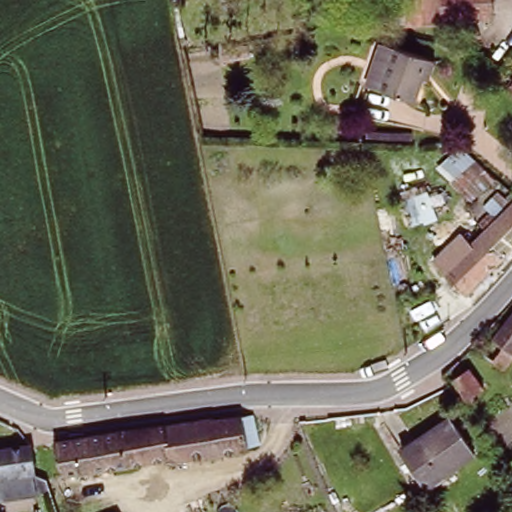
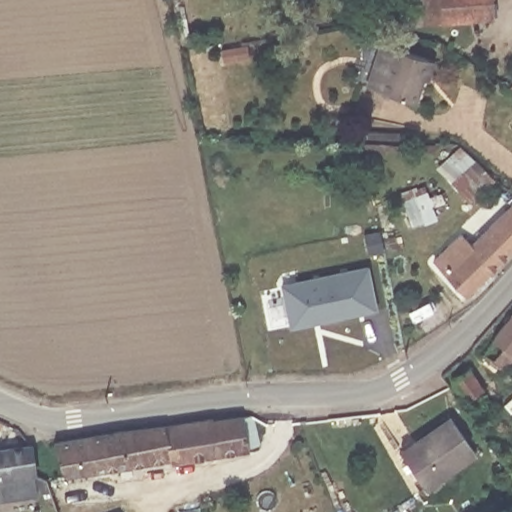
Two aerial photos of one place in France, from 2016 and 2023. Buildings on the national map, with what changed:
unchanged [(493,16),(443,20),(442,0),(491,0),(493,16)]
unchanged [(444,64),(449,65),(444,84),(438,82),(431,106),(384,90),(379,88),(392,47),(398,49),(412,54),(412,53),(444,64)]
unchanged [(459,144),(495,178),(471,202),(435,167),(459,144)]
unchanged [(447,203),(434,209),(436,212),(424,217),(418,203),(429,198),(431,200),(444,195),(447,203)]
unchanged [(512,197),(512,207),(506,202),(512,197)]
unchanged [(440,259),(467,230),(478,241),(491,228),(484,221),(498,209),(504,215),(512,207),(512,251),(469,292),(440,259)]
new [(368,271),(376,313),(291,330),(282,288),(368,271)]
unchanged [(489,355),(512,324),(512,366),(509,369),(489,355)]
unchanged [(473,394),(477,399),(470,403),(453,378),(469,367),(483,387),(473,394)]
unchanged [(266,441),(254,443),(255,447),(166,461),(166,457),(68,473),(59,440),(96,433),(127,427),(128,427),(218,415),(219,419),(223,418),(259,413),(266,441)]
unchanged [(453,415),(475,450),(448,467),(426,432),(453,415)]
unchanged [(448,467),(424,483),(402,448),(426,432),(448,467)]
unchanged [(18,443),(31,442),(32,449),(33,454),(39,453),(43,466),(45,472),(38,473),(35,472),(33,472),(33,476),(0,481),(0,446),(18,443)]

